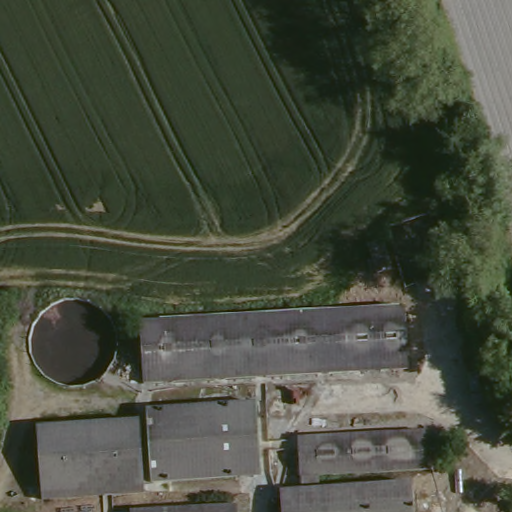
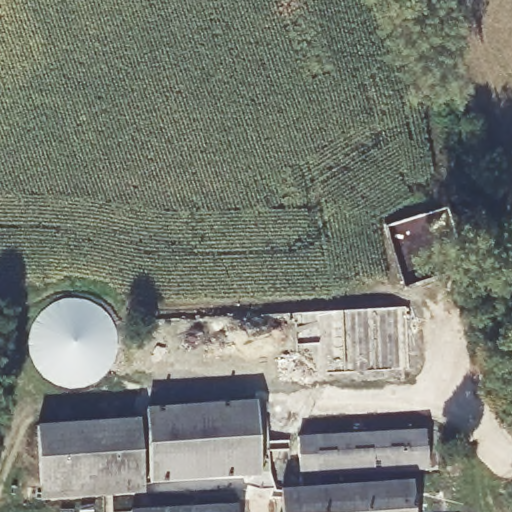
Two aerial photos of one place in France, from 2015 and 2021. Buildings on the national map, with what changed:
unchanged [(394,237),(400,267),(376,272),(372,243),(394,237)]
demolished [(405,367),(146,376),(141,315),(402,305),(405,367)]
unchanged [(254,401),(256,472),(152,479),(148,407),(254,401)]
unchanged [(43,490),(41,426),(141,422),(143,485),(43,490)]
unchanged [(284,485),(305,485),(304,432),(431,427),(434,466),(326,467),(326,483),(406,483),(409,512),(286,512),(284,485)]
unchanged [(144,496),(43,500),(43,490),(143,485),(144,496)]
unchanged [(413,496),(428,495),(448,494),(449,512),(414,512),(413,496)]
unchanged [(237,501),(238,512),(131,512),(131,510),(237,501)]

